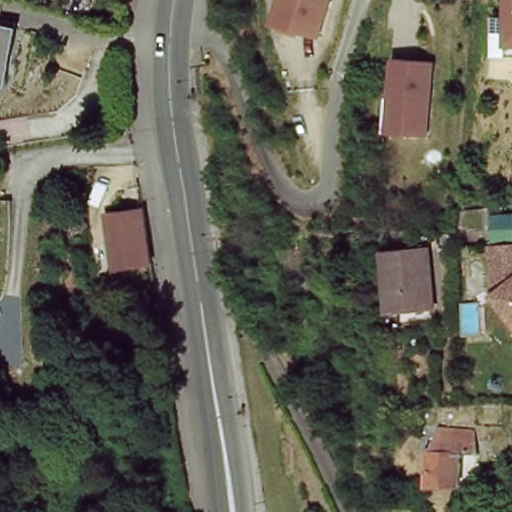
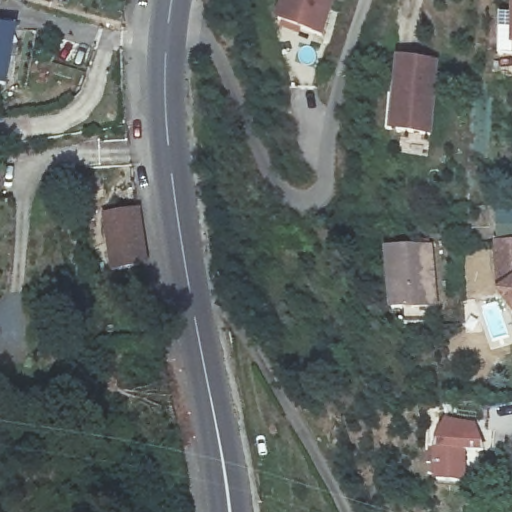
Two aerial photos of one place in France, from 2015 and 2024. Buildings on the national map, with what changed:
unchanged [(324,35),(281,25),(288,0),(334,0),(324,35)]
unchanged [(7,18),(13,77),(0,78),(0,19),(7,18)]
unchanged [(397,97),(402,98),(405,58),(443,61),(437,135),(404,133),(394,132),(397,97)]
unchanged [(104,116),(98,115),(99,86),(119,87),(118,117),(104,116)]
unchanged [(118,268),(109,214),(147,209),(154,254),(155,261),(118,268)]
unchanged [(498,241),(512,241),(512,312),(499,295),(498,241)]
unchanged [(391,248),(435,247),(437,306),(391,306),(391,248)]
unchanged [(440,447),(449,422),(484,427),(488,448),(458,450),(467,481),(442,484),(440,447)]

